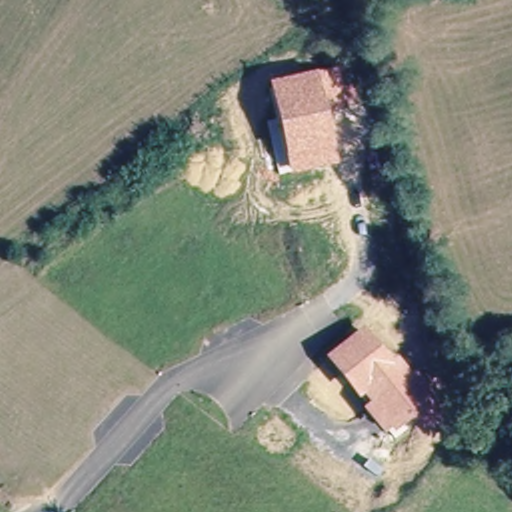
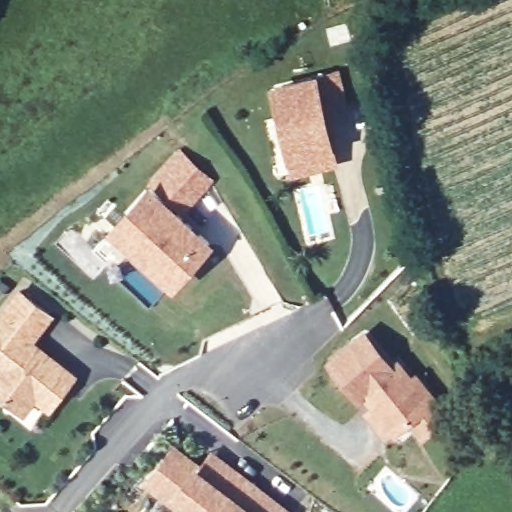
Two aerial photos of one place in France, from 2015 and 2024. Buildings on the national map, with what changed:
unchanged [(347,111),(328,115),(333,149),(336,165),(291,175),(288,160),(270,85),(317,74),(339,69),(347,111)]
new [(185,217),(215,244),(175,288),(108,227),(147,183),(179,147),(215,181),(185,217)]
new [(52,316),(35,340),(77,373),(49,411),(35,400),(24,411),(0,392),(0,311),(18,288),(52,316)]
unchanged [(400,356),(435,403),(430,407),(439,420),(421,435),(412,422),(395,434),(392,430),(384,435),(364,408),(370,405),(365,396),(359,401),(327,358),(366,330),(392,362),(400,356)]
new [(183,512),(143,481),(174,442),(202,461),(210,450),(292,512),(183,512)]

